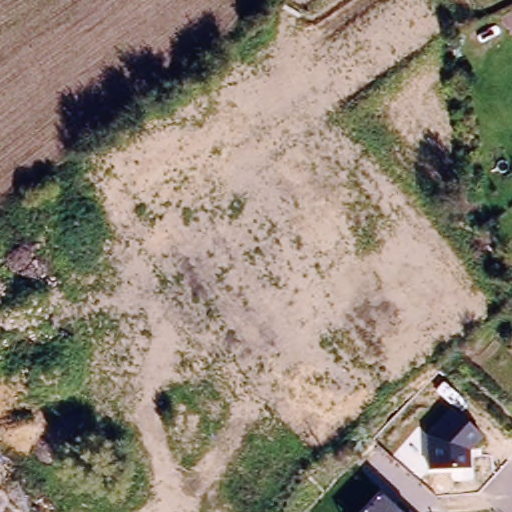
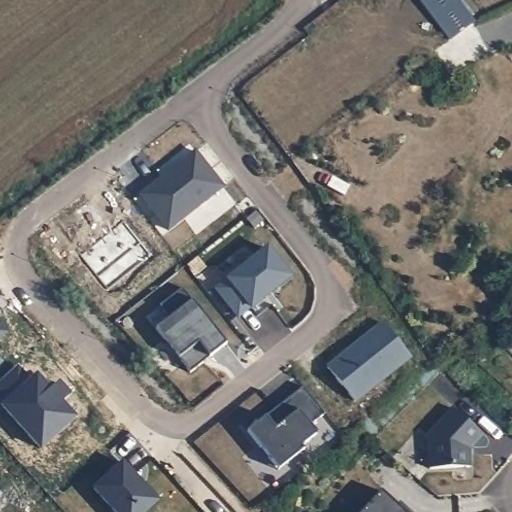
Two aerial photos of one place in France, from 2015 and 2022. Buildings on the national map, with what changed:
new [(474,23),(448,43),(416,0),(456,0),(474,23)]
new [(166,173),(167,175),(178,167),(176,165),(191,153),(220,188),(165,232),(137,196),(166,173)]
new [(265,251),(286,279),(262,297),(263,299),(248,310),(247,309),(235,318),(213,290),(265,251)]
new [(188,376),(153,331),(166,320),(156,308),(180,290),(225,347),(188,376)]
new [(380,324),(406,358),(350,402),(323,368),(380,324)]
unchanged [(512,332),(512,350),(503,339),(512,332)]
new [(262,418),(265,421),(286,404),(284,400),(300,388),(321,415),(306,426),(313,435),(297,448),(300,451),(274,471),(243,433),(262,418)]
unchanged [(428,469),(427,435),(452,408),(482,436),(470,450),(470,470),(428,469)]
new [(152,503),(142,512),(109,512),(89,491),(117,465),(152,503)]
unchanged [(403,511),(406,508),(410,512),(362,512),(381,492),(403,511)]

